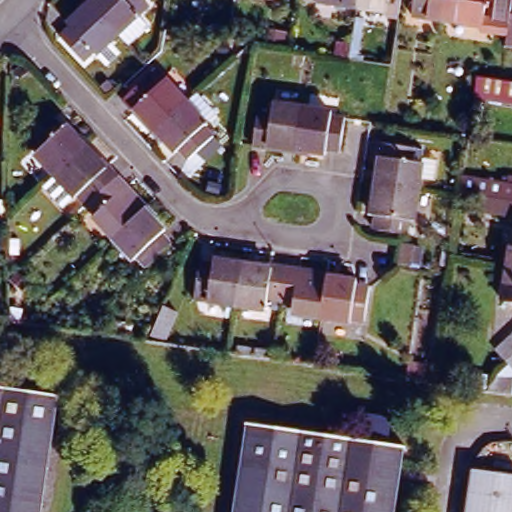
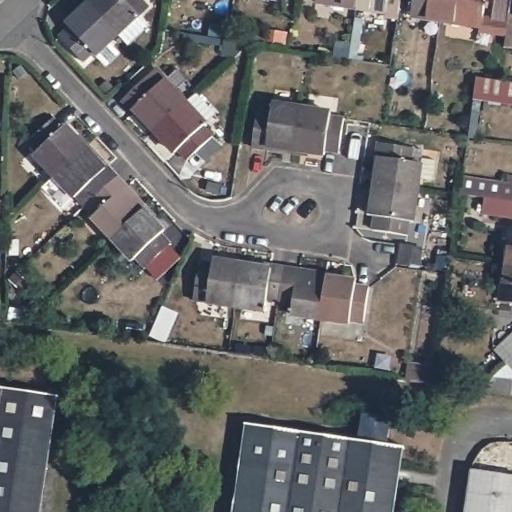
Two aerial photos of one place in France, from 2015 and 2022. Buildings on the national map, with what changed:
unchanged [(135,0),(136,1),(125,11),(132,18),(112,37),(82,5),(87,0),(135,0)]
unchanged [(257,0),(277,0),(276,7),(256,4),(257,0)]
unchanged [(317,0),(360,0),(359,9),(317,3),(317,0)]
unchanged [(359,9),(360,0),(401,0),(398,16),(359,9)]
unchanged [(398,16),(401,0),(445,0),(442,23),(398,16)]
unchanged [(442,23),(445,0),(486,0),(482,29),(442,23)]
unchanged [(82,5),(112,37),(92,56),(90,55),(79,65),(53,38),(65,28),(62,24),(82,5)]
unchanged [(505,48),(510,16),(512,16),(512,48),(505,48)]
unchanged [(479,76),(500,80),(512,82),(512,105),(475,99),(479,76)]
unchanged [(127,116),(118,104),(146,79),(156,91),(164,84),(181,104),(149,134),(131,113),(127,116)]
unchanged [(181,104),(192,95),(210,116),(198,126),(208,138),(180,163),(170,151),(167,154),(149,134),(181,104)]
unchanged [(266,154),(250,151),(257,114),(273,116),(275,105),(301,110),(300,115),(296,143),(294,154),(267,150),(266,154)]
unchanged [(296,143),(300,115),(301,110),(328,114),(328,117),(343,119),(337,156),(332,155),(322,154),(321,156),(321,158),(294,154),(296,143)]
unchanged [(29,159),(31,157),(20,145),(47,119),(58,131),(61,128),(80,148),(47,178),(29,159)]
unchanged [(77,209),(68,200),(55,213),(34,189),(47,178),(80,148),(100,169),(103,165),(113,175),(86,201),(77,209)]
unchanged [(383,166),(379,165),(381,151),(418,157),(416,172),(426,174),(421,200),(378,194),(383,166)]
unchanged [(489,192),(465,187),(467,171),(512,178),(512,212),(487,209),(489,192)]
unchanged [(113,175),(124,187),(120,190),(139,210),(107,240),(88,220),(77,209),(86,201),(113,175)]
unchanged [(378,194),(421,200),(417,228),(415,227),(412,243),(375,235),(378,220),(373,219),(378,194)]
unchanged [(158,230),(154,234),(165,244),(138,270),(127,259),(126,260),(107,240),(139,210),(158,230)]
unchanged [(512,231),(512,266),(506,265),(512,230),(512,231)]
unchanged [(207,304),(207,302),(192,299),(199,262),(212,264),(213,260),(240,264),(233,308),(207,304)]
unchanged [(262,302),(261,312),(233,308),(240,264),(267,268),(267,263),(282,265),(277,304),(262,302)]
unchanged [(290,316),(292,306),(277,304),(282,265),(298,267),(297,272),(324,276),(322,289),(318,319),(317,320),(290,316)]
unchanged [(512,266),(512,301),(501,299),(506,265),(512,266)]
unchanged [(317,320),(318,319),(322,289),(324,276),(353,280),(352,284),(353,284),(365,286),(367,286),(361,324),(346,322),(346,325),(317,320)]
unchanged [(172,311),(160,339),(145,333),(158,304),(172,311)]
unchanged [(512,337),(512,373),(505,366),(494,354),(512,337)]
unchanged [(59,396),(41,512),(0,512),(0,388),(59,396)]
unchanged [(404,447),(394,512),(232,512),(244,423),(404,447)]
unchanged [(474,472),(512,478),(512,512),(467,512),(474,472)]

